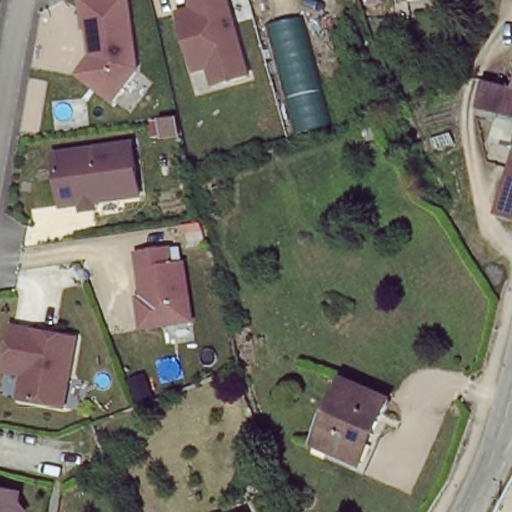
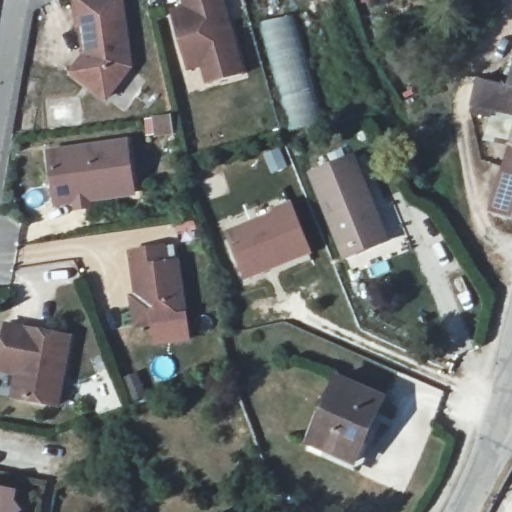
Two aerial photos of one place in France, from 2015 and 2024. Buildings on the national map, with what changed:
unchanged [(110,101),(71,69),(84,49),(74,0),(124,0),(137,67),(110,101)]
unchanged [(205,85),(201,67),(188,70),(172,6),(183,2),(182,0),(227,0),(248,75),(205,85)]
new [(322,122),(289,130),(264,22),(296,15),(322,122)]
unchanged [(499,81),(510,86),(512,81),(512,124),(487,114),(499,81)]
unchanged [(139,193),(56,205),(49,149),(132,136),(139,193)]
new [(355,155),(391,241),(344,262),(308,173),(355,155)]
unchanged [(512,155),(512,214),(492,207),(512,155)]
new [(225,231),(273,211),(272,209),(292,201),(314,253),(246,279),(225,231)]
unchanged [(192,319),(134,329),(128,294),(137,292),(130,246),(168,242),(171,259),(184,258),(192,319)]
new [(190,319),(192,341),(155,346),(152,326),(190,319)]
unchanged [(61,408),(11,399),(15,373),(0,371),(0,341),(3,322),(72,332),(61,408)]
unchanged [(349,460),(317,444),(313,441),(337,380),(385,403),(372,436),(360,466),(349,460)]
unchanged [(18,495),(17,502),(23,512),(0,512),(0,492),(18,495)]

